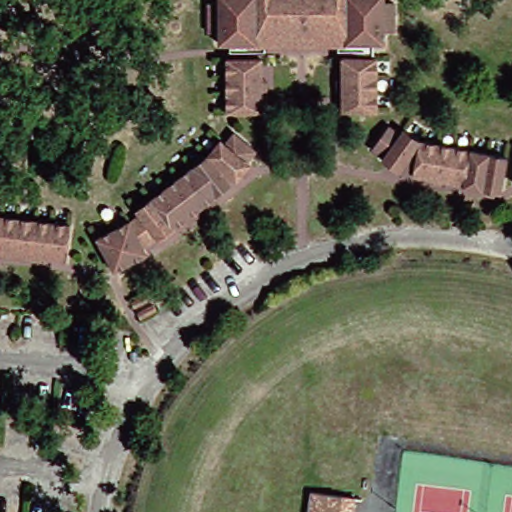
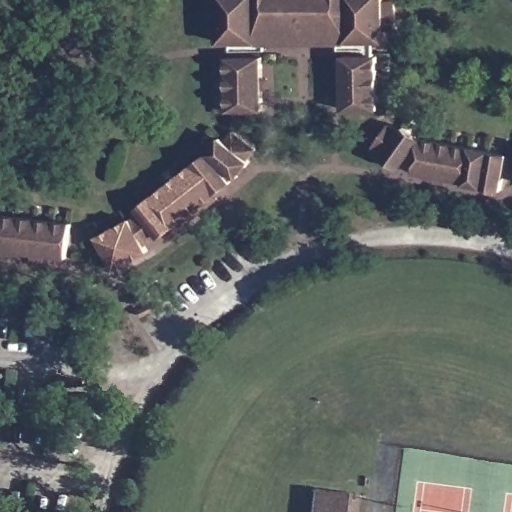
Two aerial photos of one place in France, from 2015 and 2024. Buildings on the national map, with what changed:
unchanged [(330,52),(330,44),(256,46),(256,55),(222,54),(221,47),(213,47),(213,0),(378,0),(378,6),(390,7),(388,33),(377,35),(376,43),(365,43),(365,52),(330,52)]
unchanged [(374,56),(374,109),(339,108),(338,55),(374,56)]
unchanged [(257,58),(258,111),(223,111),(223,57),(257,58)]
unchanged [(384,130),(395,137),(398,133),(417,143),(502,160),(495,196),(457,190),(458,187),(409,178),(410,176),(399,171),(397,175),(379,164),(380,162),(369,154),(384,130)]
unchanged [(122,223),(124,223),(133,216),(128,211),(151,195),(196,160),(212,141),(217,144),(226,133),(248,151),(240,162),(241,165),(223,187),(152,242),(141,247),(144,252),(115,274),(91,246),(122,223)]
unchanged [(58,263),(0,254),(0,219),(62,230),(58,263)]
unchanged [(303,512),(305,493),(338,498),(336,512),(303,512)]
unchanged [(351,512),(336,512),(338,498),(353,500),(351,512)]

